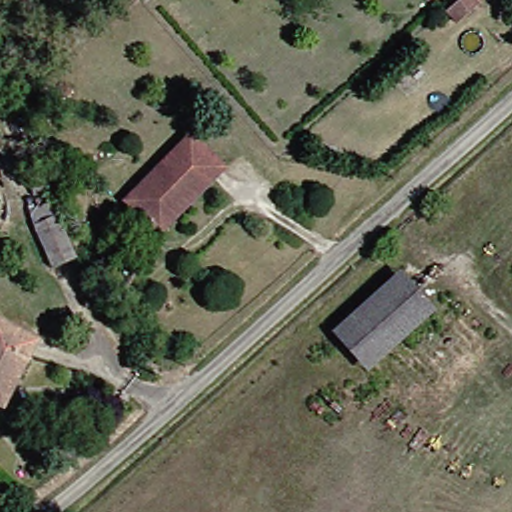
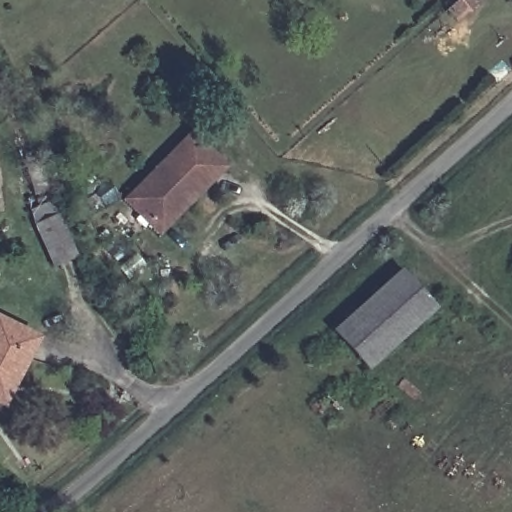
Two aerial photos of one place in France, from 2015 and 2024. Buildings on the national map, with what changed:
unchanged [(452,15),(469,0),(479,0),(485,6),(469,20),(462,26),(458,22),(452,15)]
unchanged [(225,166),(164,230),(132,199),(194,136),(225,166)]
unchanged [(82,246),(60,261),(33,216),(55,192),(82,246)]
unchanged [(405,270),(439,308),(373,368),(338,330),(405,270)]
unchanged [(6,404),(0,400),(0,317),(1,316),(42,340),(6,404)]

